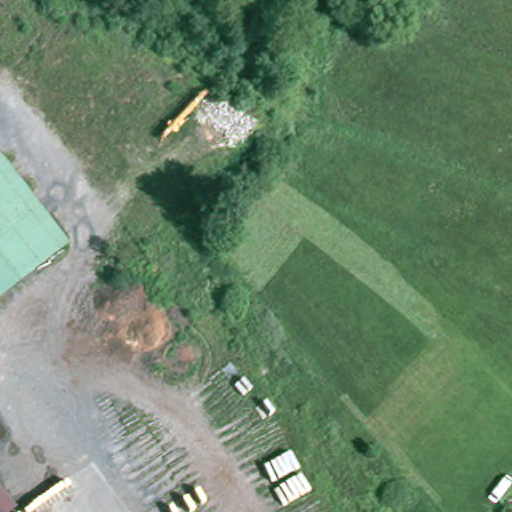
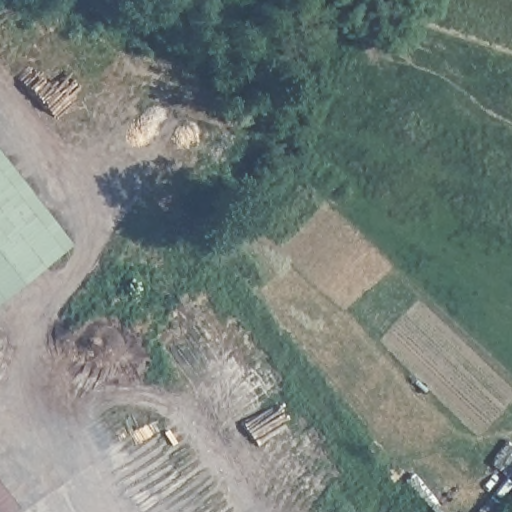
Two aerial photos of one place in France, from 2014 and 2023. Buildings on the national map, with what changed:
unchanged [(0,296),(0,161),(65,244),(0,296)]
unchanged [(0,483),(17,505),(9,512),(0,512),(0,483)]

